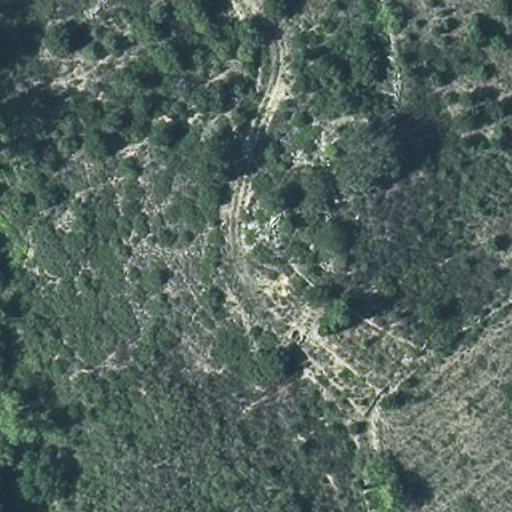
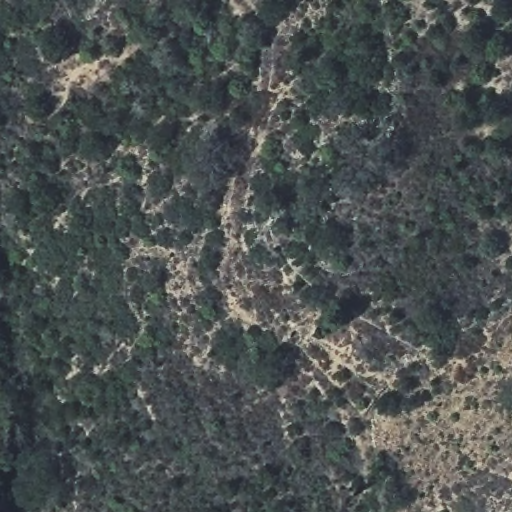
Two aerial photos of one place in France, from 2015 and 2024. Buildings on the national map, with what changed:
[]

